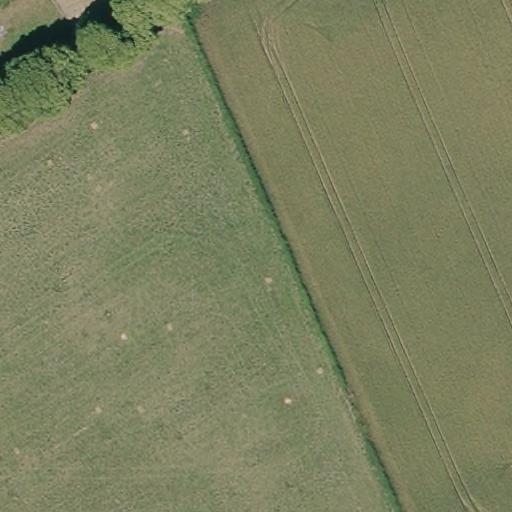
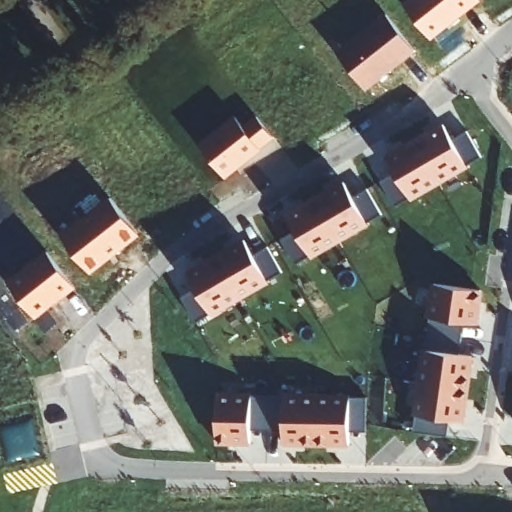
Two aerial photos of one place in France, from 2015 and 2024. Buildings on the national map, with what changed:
new [(433,39),(404,3),(407,0),(481,0),(433,39)]
new [(418,51),(368,90),(338,52),(386,12),(418,51)]
new [(243,125),(256,115),(274,137),(227,177),(199,142),(235,114),(243,125)]
new [(395,206),(382,182),(396,175),(385,156),(443,122),(454,141),(466,134),(478,156),(469,167),(427,192),(411,202),(409,197),(395,206)]
new [(294,261),(282,240),(296,232),(286,214),(343,180),(353,198),(366,191),(381,217),(311,257),(294,261)]
new [(140,235),(93,272),(62,235),(110,197),(140,235)]
new [(196,322),(182,297),(197,290),(186,271),(244,238),(254,256),(267,249),(280,271),(269,282),(212,316),(196,322)]
new [(76,287),(37,317),(7,282),(46,250),(76,287)]
new [(480,323),(463,322),(457,352),(477,352),(466,422),(450,420),(448,432),(414,427),(416,413),(411,413),(423,347),(426,348),(431,317),(427,316),(432,281),(485,287),(480,323)]
new [(252,393),(252,397),(361,401),(366,433),(350,432),(350,448),(283,447),(283,431),(252,430),(251,446),(224,446),(224,435),(217,435),(218,392),(252,393)]

